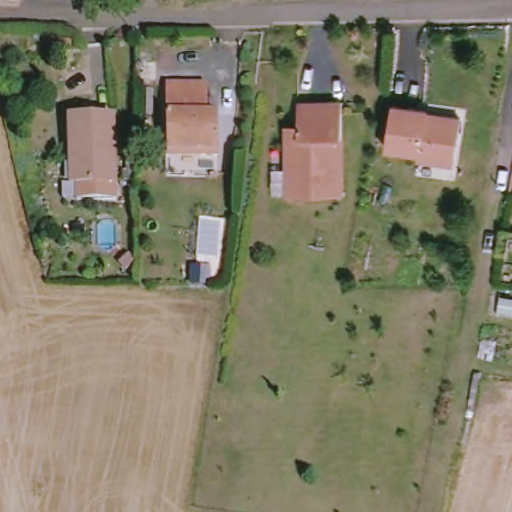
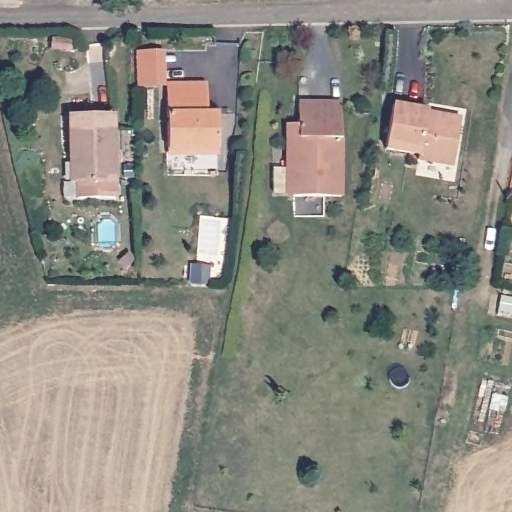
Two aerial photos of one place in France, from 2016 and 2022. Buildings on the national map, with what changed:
unchanged [(0,1),(0,0),(19,0),(18,5),(0,1)]
unchanged [(201,112),(213,112),(214,153),(194,152),(194,147),(162,147),(160,82),(201,81),(201,112)]
unchanged [(288,197),(287,179),(280,164),(281,129),(294,126),(293,100),(333,102),(335,195),(288,197)]
unchanged [(406,160),(406,156),(376,149),(386,103),(418,110),(417,117),(429,119),(429,115),(455,121),(449,162),(430,157),(428,165),(406,160)]
unchanged [(75,199),(76,186),(76,155),(70,154),(69,117),(115,116),(115,185),(115,199),(75,199)]

